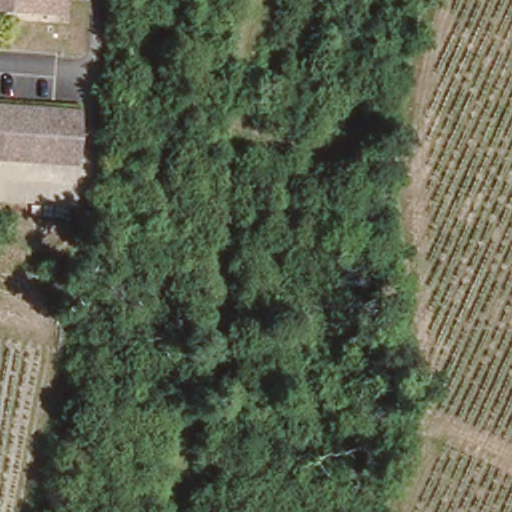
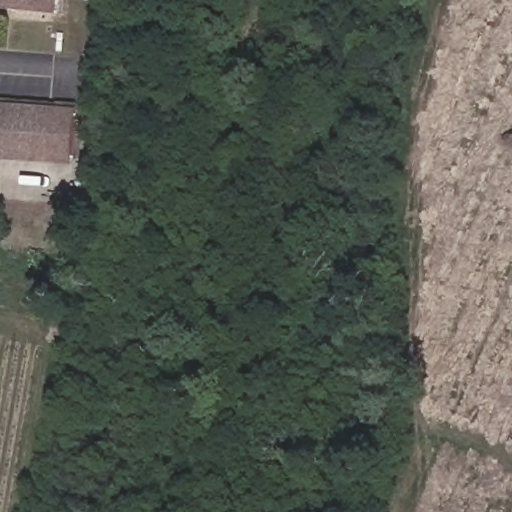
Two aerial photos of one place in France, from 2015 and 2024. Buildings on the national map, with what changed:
unchanged [(60,0),(60,5),(0,2),(0,0),(60,0)]
unchanged [(27,106),(75,109),(73,156),(0,152),(0,105),(27,106)]

